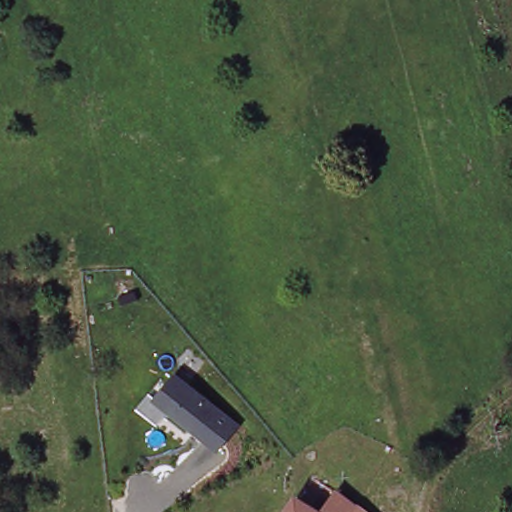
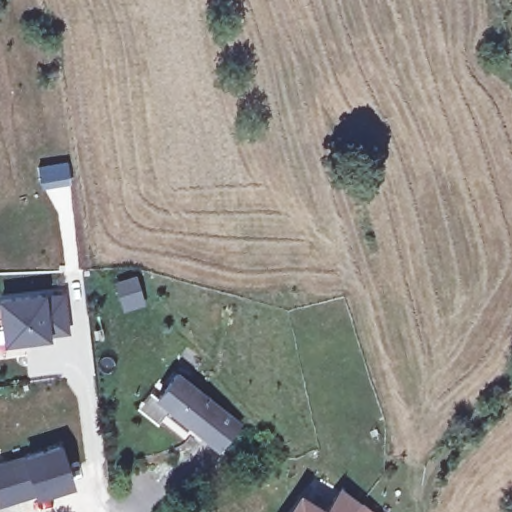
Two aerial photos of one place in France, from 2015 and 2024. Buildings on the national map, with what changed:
new [(0,327),(0,296),(44,292),(44,295),(65,292),(70,334),(50,339),(2,345),(0,327)]
unchanged [(137,410),(149,393),(155,398),(177,373),(238,424),(215,452),(168,415),(157,427),(137,410)]
new [(58,442),(75,487),(34,500),(33,496),(0,506),(0,460),(22,453),(58,442)]
unchanged [(353,505),(348,512),(320,512),(332,491),(353,505)]
unchanged [(320,512),(286,512),(295,497),(320,512)]
unchanged [(348,512),(353,505),(364,512),(348,512)]

